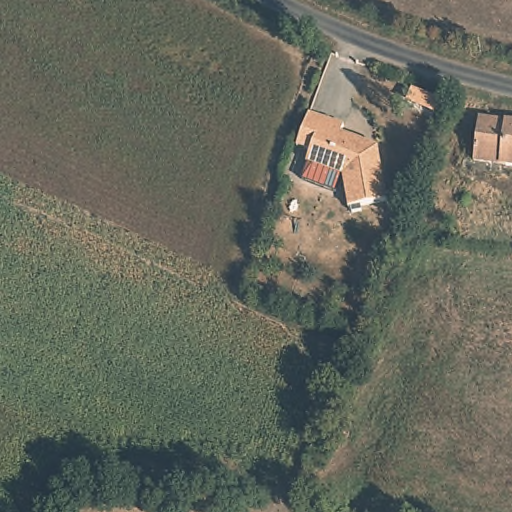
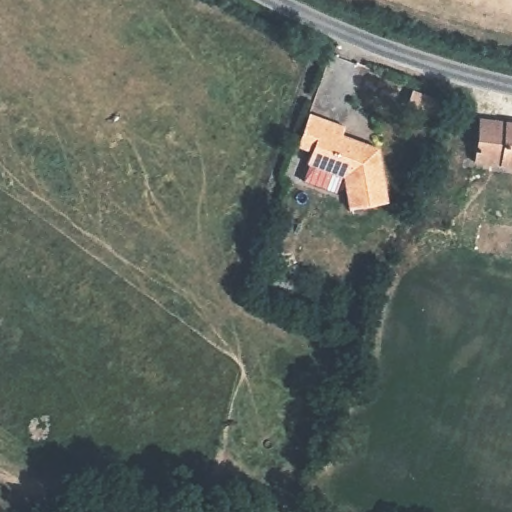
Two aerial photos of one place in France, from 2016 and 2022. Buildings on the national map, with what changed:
unchanged [(341,136),(378,149),(385,204),(347,210),(342,178),(306,165),(310,153),(296,148),(308,115),(323,121),(343,128),(341,136)]
unchanged [(462,161),(465,140),(476,141),(477,133),(465,131),(467,119),(512,124),(512,167),(475,163),(462,161)]

